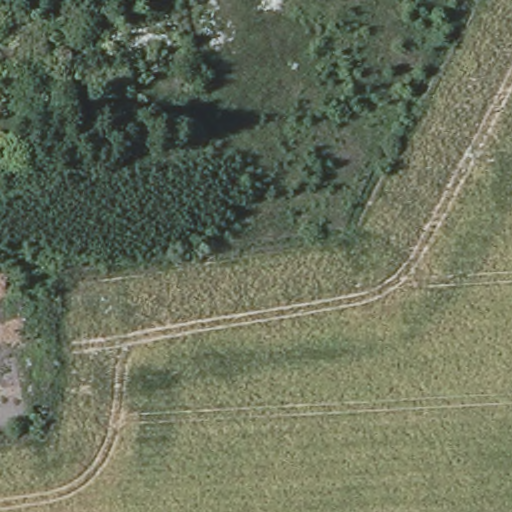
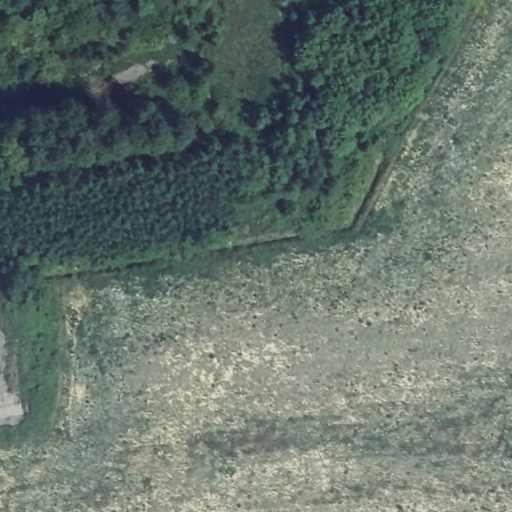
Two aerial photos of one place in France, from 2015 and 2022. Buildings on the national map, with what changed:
[]

